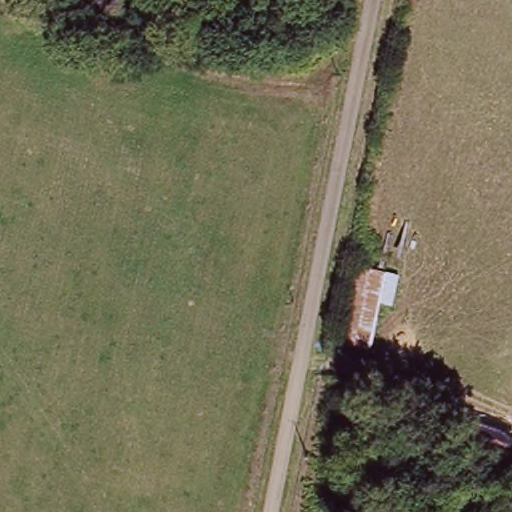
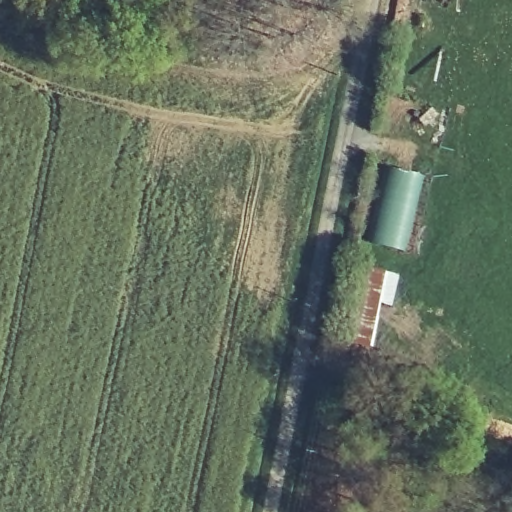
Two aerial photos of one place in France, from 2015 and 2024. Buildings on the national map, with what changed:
new [(363,242),(381,166),(423,175),(405,251),(363,242)]
unchanged [(379,305),(370,349),(341,343),(358,267),(400,275),(393,307),(379,305)]

